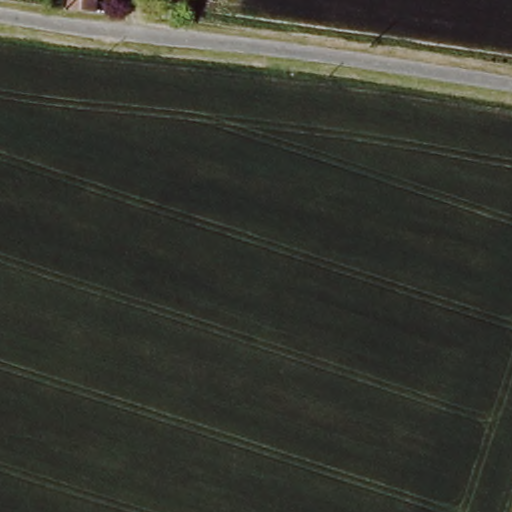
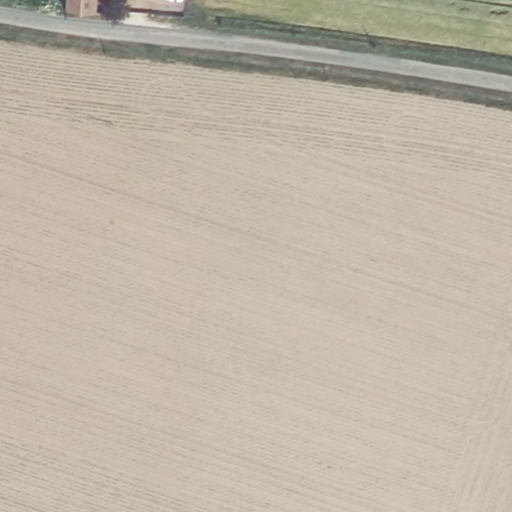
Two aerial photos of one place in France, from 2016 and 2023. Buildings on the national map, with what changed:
unchanged [(65,5),(66,0),(105,0),(105,11),(65,5)]

